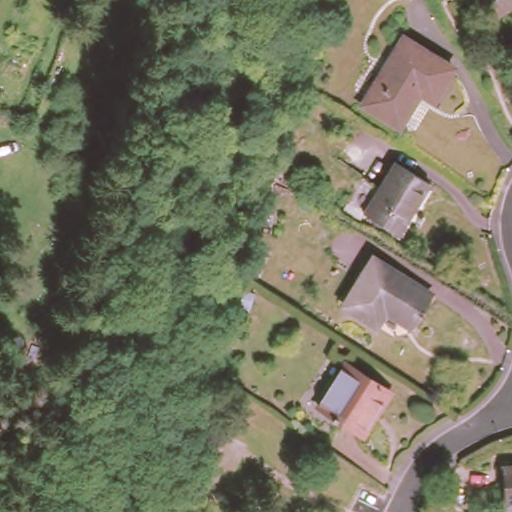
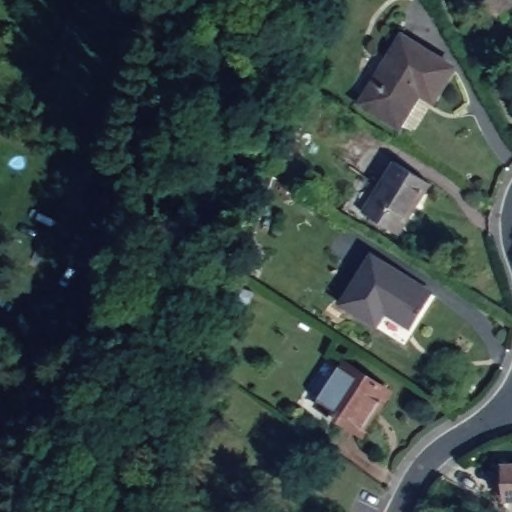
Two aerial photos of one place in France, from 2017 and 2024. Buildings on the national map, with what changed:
unchanged [(484,0),(512,0),(512,7),(494,18),(484,0)]
unchanged [(392,121),(356,98),(397,32),(446,63),(426,96),(412,88),(407,98),(392,121)]
unchanged [(429,179),(396,230),(362,208),(395,158),(429,179)]
unchanged [(409,322),(384,306),(375,319),(342,299),(372,253),(430,289),(409,322)]
unchanged [(376,413),(372,410),(357,432),(317,405),(344,363),(390,393),(376,413)]
unchanged [(508,496),(506,461),(512,460),(512,496),(508,496)]

